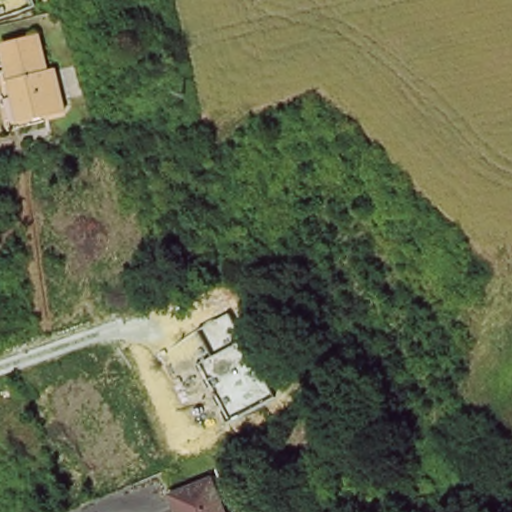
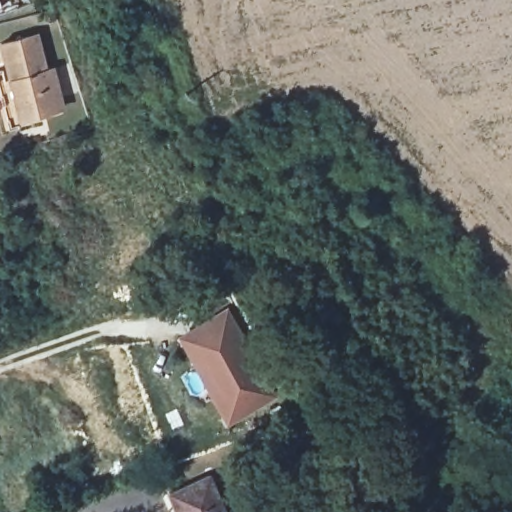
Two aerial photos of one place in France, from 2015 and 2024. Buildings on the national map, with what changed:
unchanged [(16,124),(2,67),(17,63),(11,39),(46,30),(55,66),(63,64),(72,103),(30,114),(31,120),(16,124)]
new [(227,421),(195,364),(181,337),(197,329),(228,312),(274,396),(227,421)]
unchanged [(216,476),(230,512),(182,512),(175,493),(216,476)]

